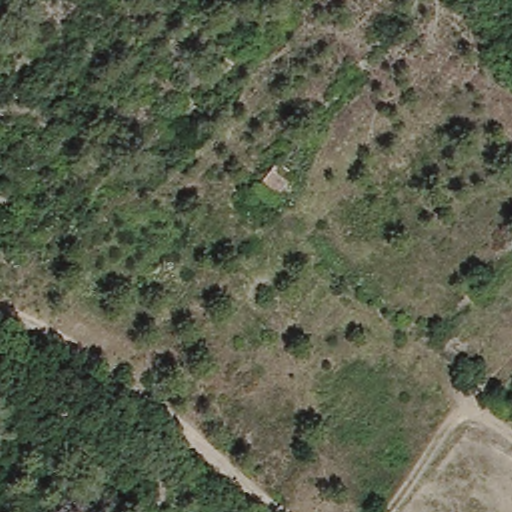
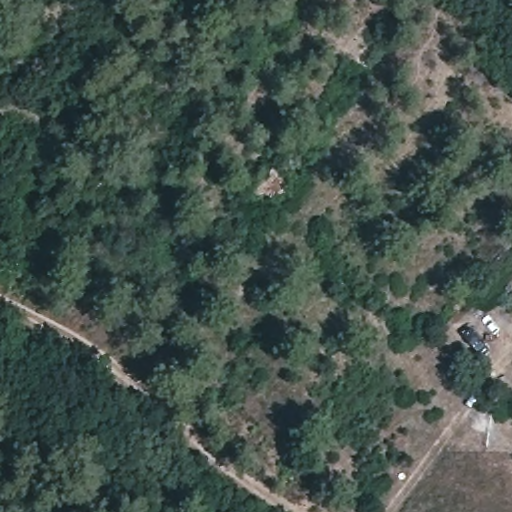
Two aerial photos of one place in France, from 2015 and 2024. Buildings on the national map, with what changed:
unchanged [(296,174),(275,200),(257,186),(278,160),(296,174)]

